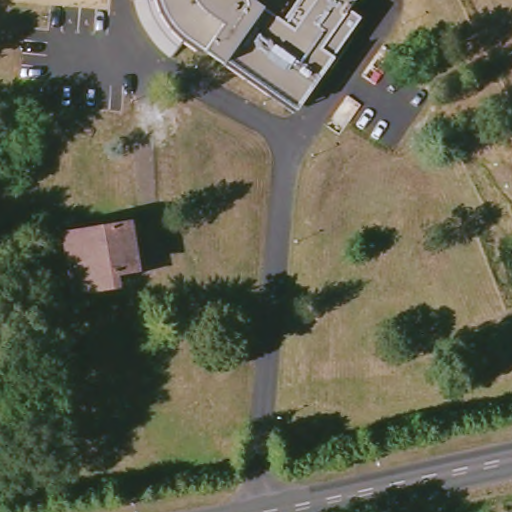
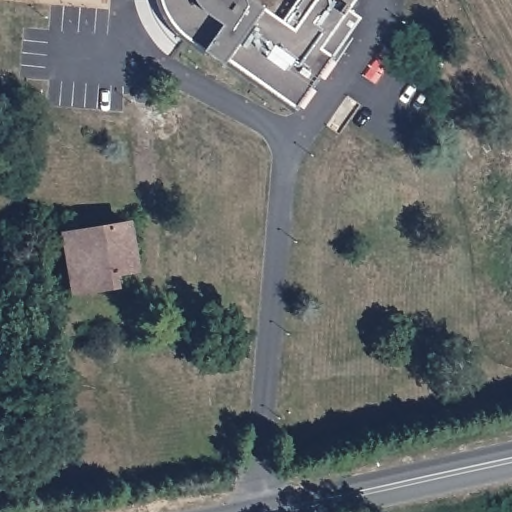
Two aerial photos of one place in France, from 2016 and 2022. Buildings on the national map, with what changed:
unchanged [(362,21),(333,59),(299,111),(230,66),(227,72),(206,56),(207,52),(182,36),(169,17),(162,0),(359,0),(353,14),(362,21)]
unchanged [(125,227),(130,271),(111,274),(112,290),(69,295),(62,236),(125,227)]

